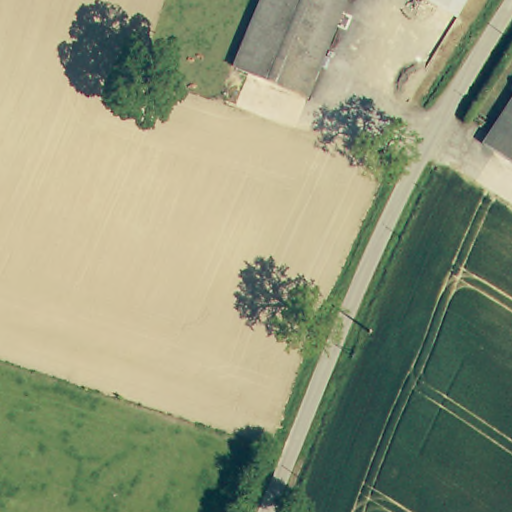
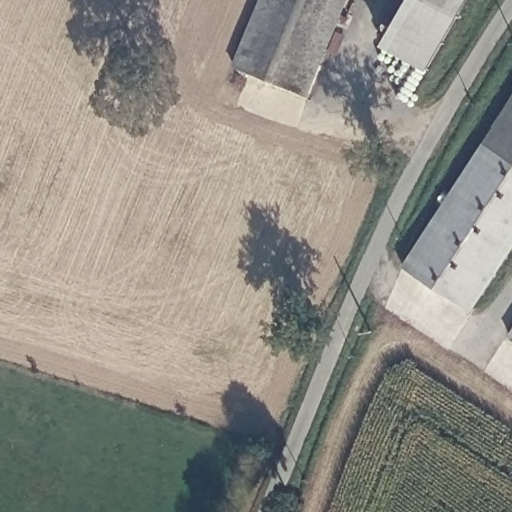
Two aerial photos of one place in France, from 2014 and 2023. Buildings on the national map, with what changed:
unchanged [(235,64),(262,0),(344,0),(304,94),(235,64)]
new [(384,46),(410,0),(468,0),(428,71),(384,46)]
unchanged [(491,139),(498,126),(512,104),(512,153),(491,139)]
new [(472,312),(405,269),(491,139),(512,153),(512,251),(472,312)]
new [(509,334),(512,329),(512,337),(509,334)]

